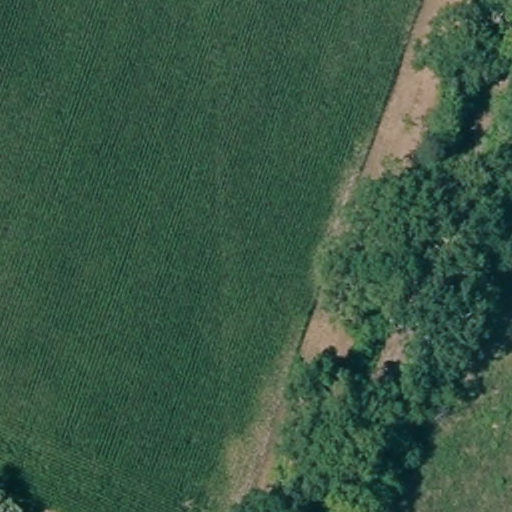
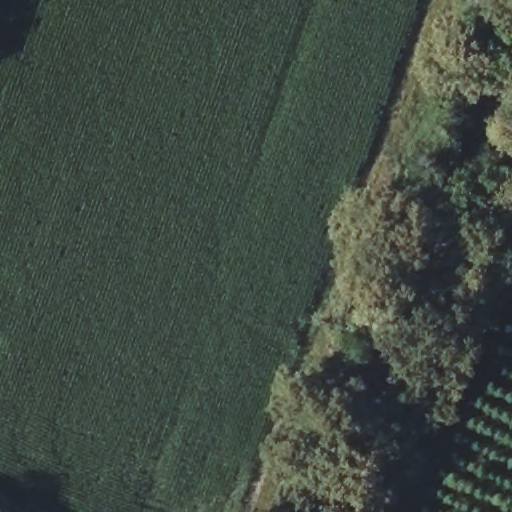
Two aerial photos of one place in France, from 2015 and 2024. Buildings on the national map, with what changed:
[]

